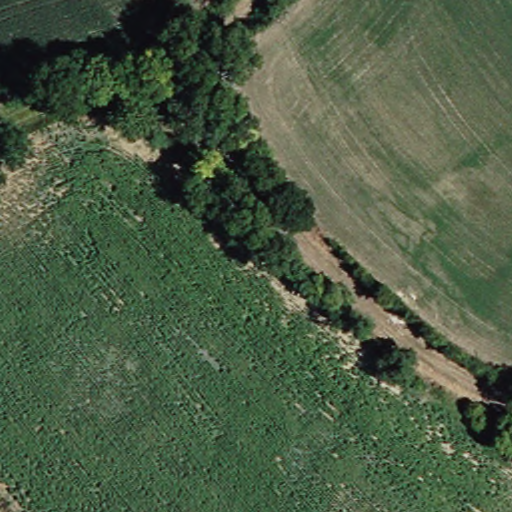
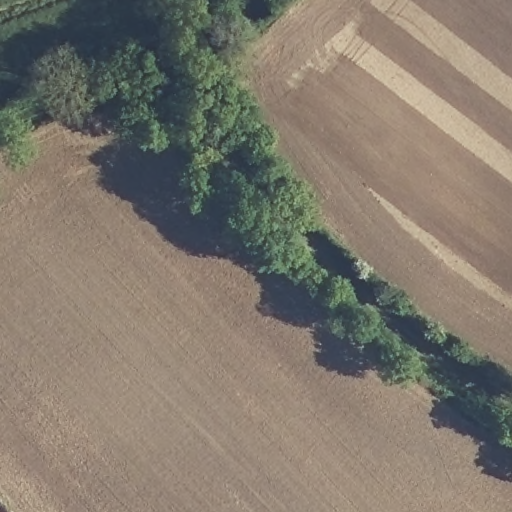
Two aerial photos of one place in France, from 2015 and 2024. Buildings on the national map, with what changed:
[]

